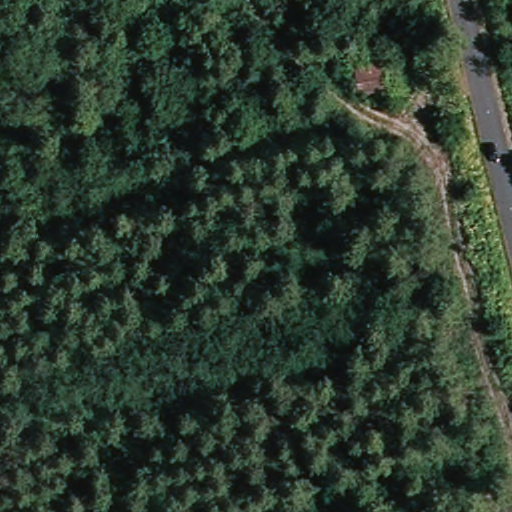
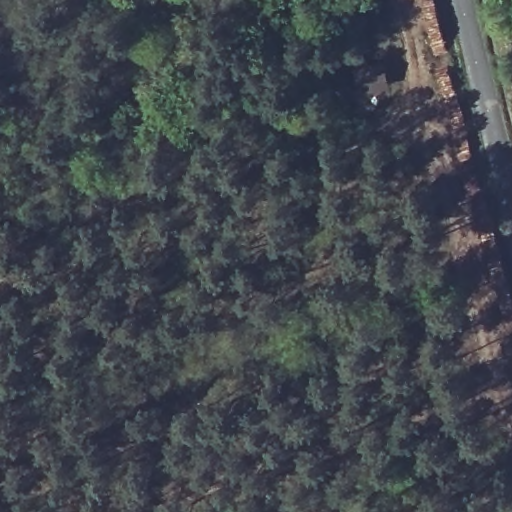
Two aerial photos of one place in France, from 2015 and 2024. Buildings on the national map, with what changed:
unchanged [(358,69),(382,64),(387,85),(362,89),(358,69)]

